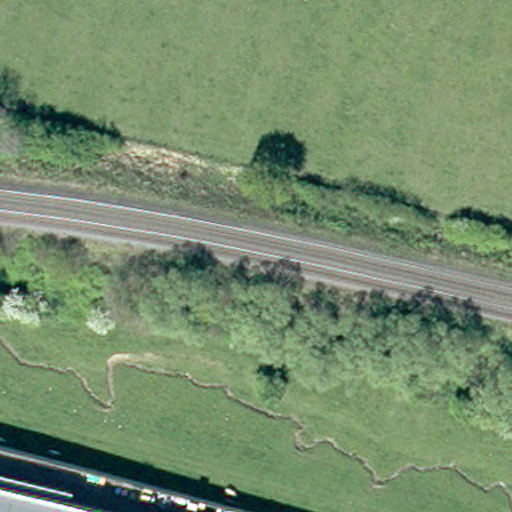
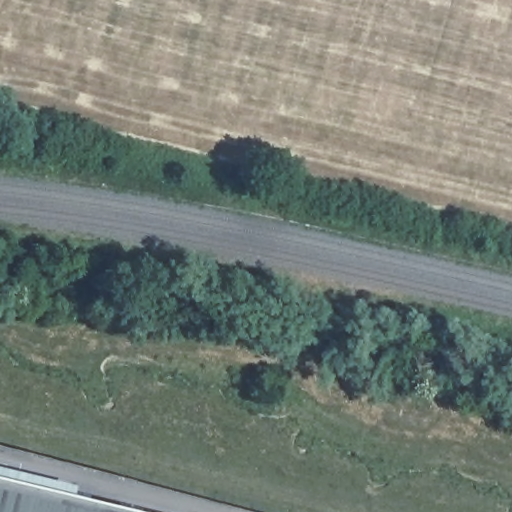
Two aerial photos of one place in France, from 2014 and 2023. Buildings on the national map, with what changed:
unchanged [(151,512),(0,512),(0,476),(151,512)]

